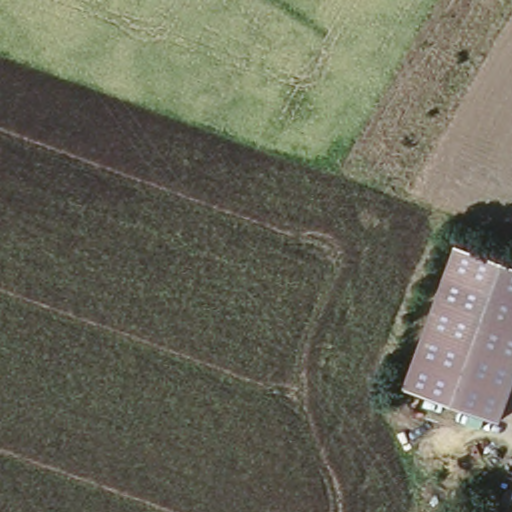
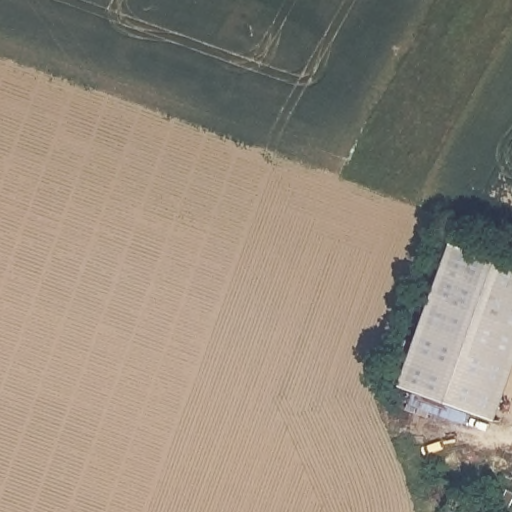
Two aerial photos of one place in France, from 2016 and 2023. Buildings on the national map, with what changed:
unchanged [(499,427),(398,390),(451,244),(512,263),(512,385),(499,427)]

